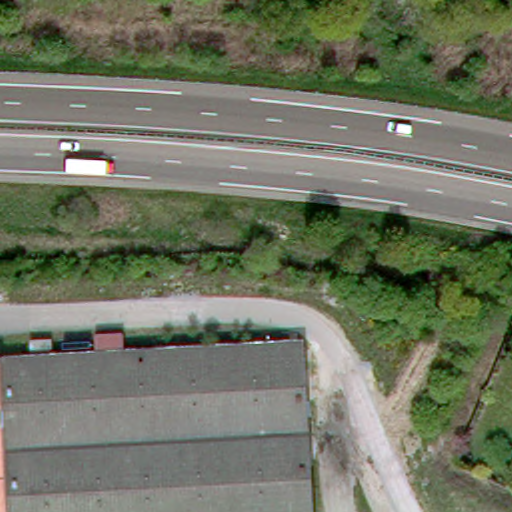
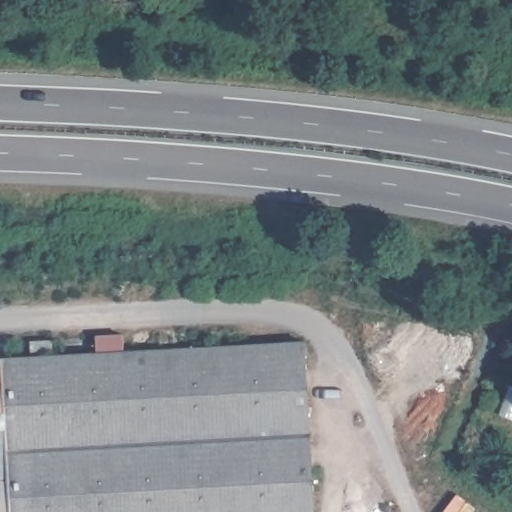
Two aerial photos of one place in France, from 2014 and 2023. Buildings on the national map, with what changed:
unchanged [(0,360),(25,358),(100,354),(100,337),(128,335),(129,353),(310,343),(318,512),(0,512),(0,360)]
unchanged [(57,340),(57,353),(33,354),(32,342),(57,340)]

